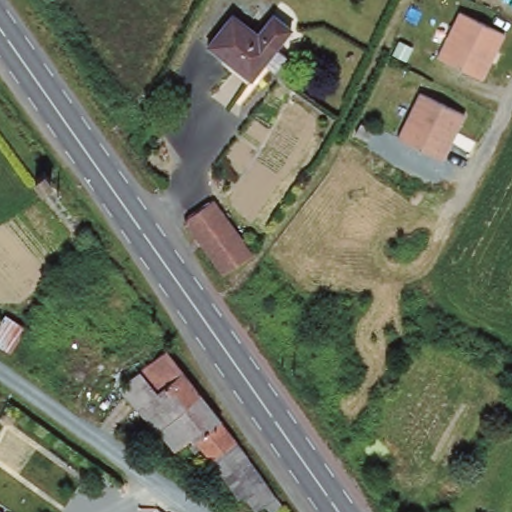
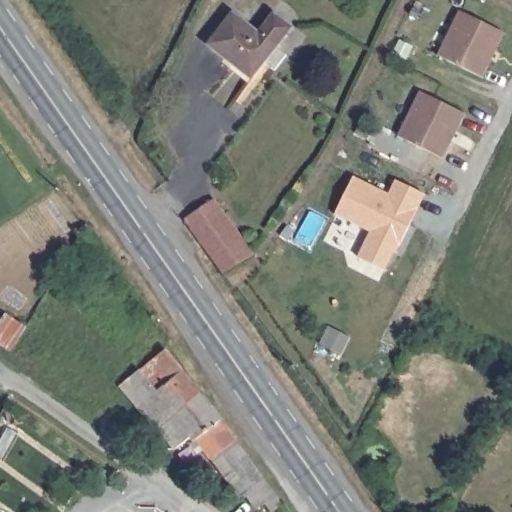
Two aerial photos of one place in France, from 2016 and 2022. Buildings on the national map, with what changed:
unchanged [(440,54),(462,7),(508,30),(485,78),(440,54)]
unchanged [(289,28),(274,47),(284,55),(272,69),(263,61),(250,76),(207,41),(232,11),(256,31),(272,13),(289,28)]
unchanged [(400,139),(423,89),(468,112),(446,160),(400,139)]
new [(385,272),(357,257),(369,231),(334,214),(353,177),(388,194),(394,180),(423,195),(385,272)]
unchanged [(187,217),(215,197),(256,255),(226,273),(187,217)]
unchanged [(201,395),(178,415),(180,416),(164,431),(161,434),(123,386),(169,352),(201,395)]
unchanged [(281,505),(272,512),(259,512),(246,495),(241,498),(195,437),(179,452),(164,431),(180,416),(178,415),(201,395),(243,452),(281,505)]

